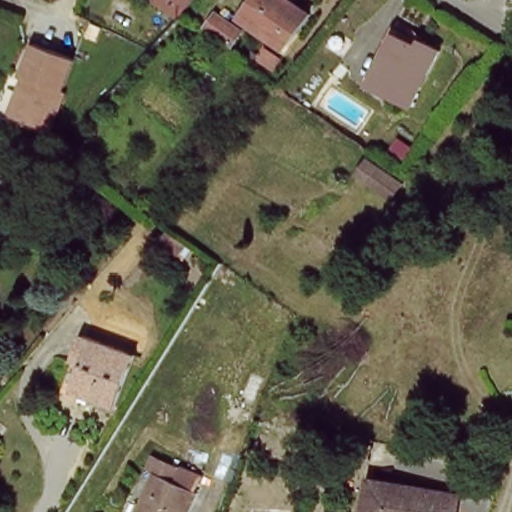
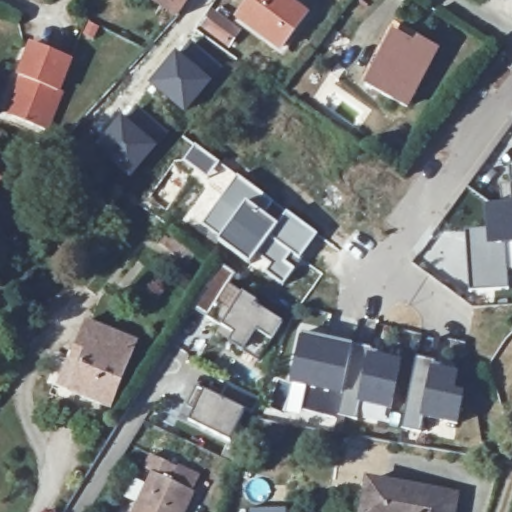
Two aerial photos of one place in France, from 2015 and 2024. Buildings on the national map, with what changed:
unchanged [(147,0),(179,0),(169,15),(147,0)]
unchanged [(288,0),(306,11),(286,40),(241,11),(250,0),(288,0)]
unchanged [(208,36),(223,15),(250,34),(234,55),(208,36)]
unchanged [(391,35),(413,47),(417,40),(433,49),(405,103),(366,83),(391,35)]
unchanged [(16,75),(29,42),(69,57),(56,89),(59,91),(44,129),(10,116),(2,113),(16,75)]
new [(193,42),(224,68),(214,81),(185,115),(148,84),(177,50),(183,54),(193,42)]
new [(122,114),(159,144),(126,181),(89,152),(122,114)]
new [(193,143),(220,163),(207,179),(182,159),(193,143)]
unchanged [(13,145),(37,164),(19,197),(0,181),(0,155),(13,145)]
demolished [(371,171),(380,158),(415,180),(404,193),(371,171)]
new [(502,185),(511,185),(511,167),(512,167),(512,201),(502,202),(502,185)]
new [(238,176),(287,211),(258,255),(251,265),(199,226),(238,176)]
new [(287,211),(318,234),(283,287),(264,273),(271,264),(258,255),(287,211)]
unchanged [(159,228),(177,242),(168,254),(149,241),(159,228)]
new [(220,264),(236,274),(231,282),(239,289),(242,285),(260,297),(258,302),(255,306),(282,322),(271,341),(255,331),(244,351),(229,342),(216,331),(220,326),(208,318),(191,308),(220,264)]
new [(355,345),(354,348),(370,350),(369,357),(401,364),(390,413),(359,406),(357,421),(345,418),(342,435),(335,434),(337,421),(302,413),(309,390),(291,385),(303,336),(355,345)]
unchanged [(81,359),(72,354),(80,337),(129,362),(106,409),(66,392),(81,359)]
new [(461,375),(455,430),(417,425),(415,434),(400,432),(410,359),(426,361),(425,369),(461,375)]
new [(259,400),(253,415),(246,412),(232,443),(189,422),(179,418),(193,387),(203,392),(216,397),(226,384),(259,400)]
unchanged [(345,448),(367,451),(365,466),(344,462),(345,448)]
unchanged [(145,476),(139,473),(146,455),(171,467),(192,476),(185,494),(178,512),(131,512),(145,476)]
unchanged [(370,475),(456,487),(452,512),(367,512),(370,475)]

